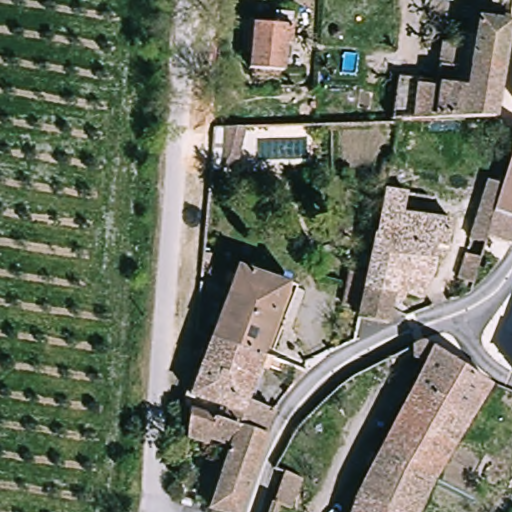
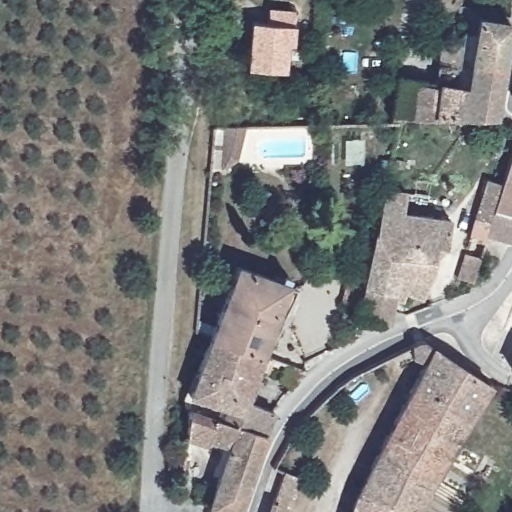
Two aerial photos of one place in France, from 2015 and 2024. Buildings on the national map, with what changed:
unchanged [(294,40),(289,40),(288,66),(255,67),(255,22),(276,22),(276,7),(294,8),(294,40)]
unchanged [(440,80),(449,80),(454,44),(472,46),(475,26),(484,27),(486,16),(512,20),(512,55),(509,70),(508,79),(501,110),(448,117),(435,118),(440,80)]
unchanged [(410,77),(440,80),(435,118),(410,118),(405,118),(410,77)]
unchanged [(239,128),(261,127),(248,159),(235,162),(239,128)]
unchanged [(493,179),(507,182),(512,165),(512,240),(492,233),(490,242),(475,240),(493,179)]
unchanged [(450,241),(441,240),(383,231),(390,205),(395,186),(416,191),(411,210),(455,218),(450,241)]
unchanged [(363,316),(365,307),(348,303),(350,295),(356,269),(373,272),(383,231),(441,240),(436,272),(422,295),(410,292),(407,303),(398,300),(393,322),(363,316)]
unchanged [(486,256),(480,277),(465,273),(472,250),(486,256)]
unchanged [(242,264),(299,282),(277,347),(269,345),(267,351),(218,336),(242,264)]
unchanged [(419,512),(356,512),(430,354),(416,340),(432,333),(438,337),(499,373),(421,507),(419,512)]
unchanged [(282,406),(276,415),(272,429),(195,411),(196,397),(218,336),(267,351),(253,397),(282,406)]
unchanged [(272,429),(265,448),(243,509),(213,499),(232,442),(192,434),(195,411),(272,429)]
unchanged [(276,498),(287,467),(305,472),(295,504),(276,498)]

